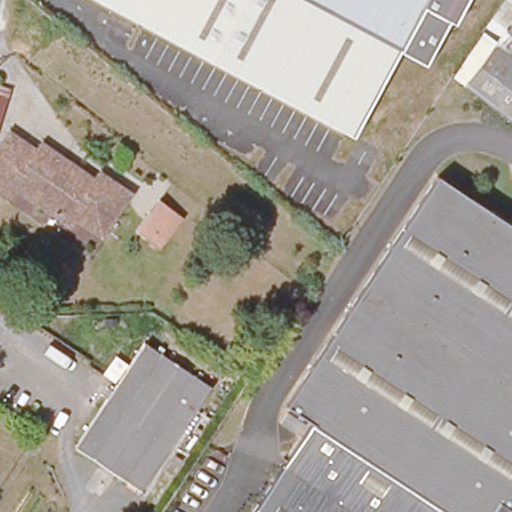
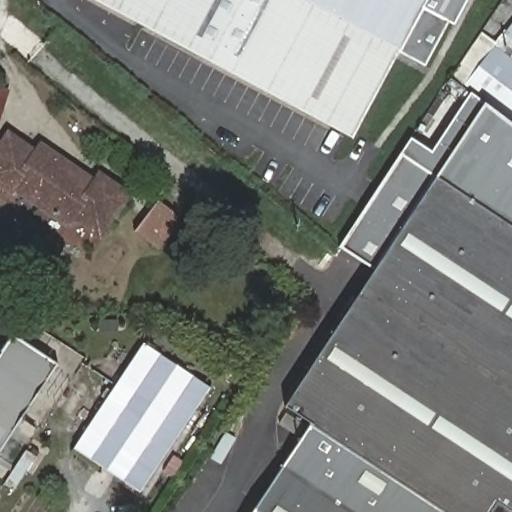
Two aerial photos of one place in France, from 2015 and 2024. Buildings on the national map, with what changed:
unchanged [(449,19),(425,62),(401,49),(352,136),(98,0),(466,0),(455,21),(449,19)]
unchanged [(507,31),(512,25),(512,35),(507,31)]
new [(494,41),(505,27),(507,31),(512,35),(512,61),(496,49),(465,88),(451,76),(482,31),(494,41)]
unchanged [(496,49),(512,61),(512,124),(465,88),(496,49)]
unchanged [(0,125),(0,91),(10,94),(0,125)]
new [(411,136),(432,151),(471,92),(512,123),(512,230),(436,180),(377,270),(338,247),(411,136)]
unchanged [(127,199),(100,239),(74,221),(69,229),(15,192),(10,199),(0,192),(0,153),(10,140),(36,158),(40,150),(94,187),(100,180),(127,199)]
unchanged [(311,423),(287,407),(342,323),(436,180),(512,230),(512,512),(252,512),(311,423)]
unchanged [(177,218),(153,248),(131,230),(155,200),(177,218)]
new [(0,356),(14,336),(57,364),(0,451),(0,356)]
unchanged [(75,453),(145,348),(210,392),(141,496),(75,453)]
unchanged [(304,425),(297,435),(280,423),(287,413),(304,425)]

